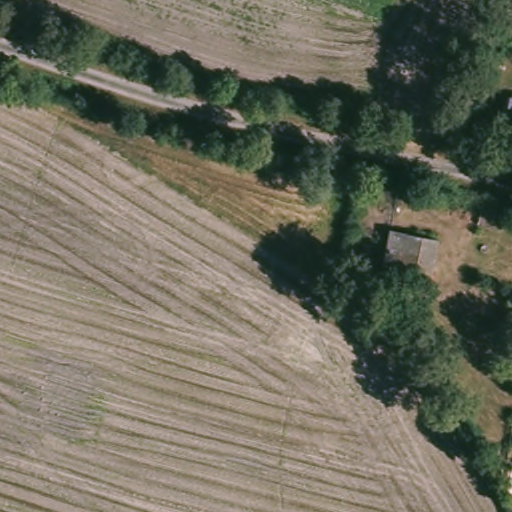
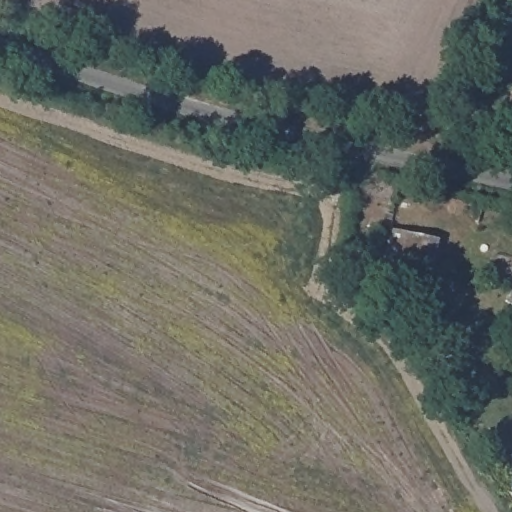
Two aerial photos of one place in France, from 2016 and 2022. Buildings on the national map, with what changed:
unchanged [(441,239),(431,286),(379,273),(390,226),(441,239)]
unchanged [(512,292),(512,304),(509,303),(512,292)]

